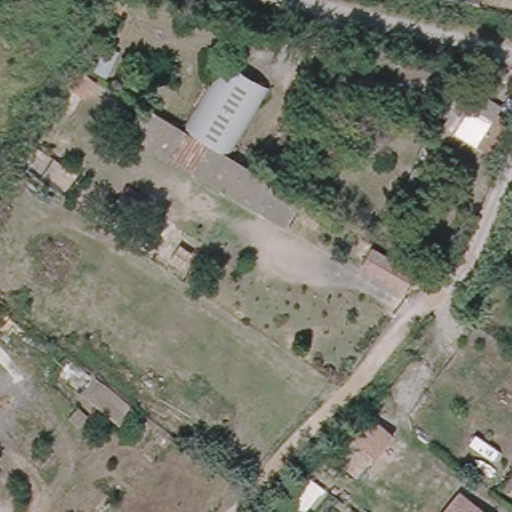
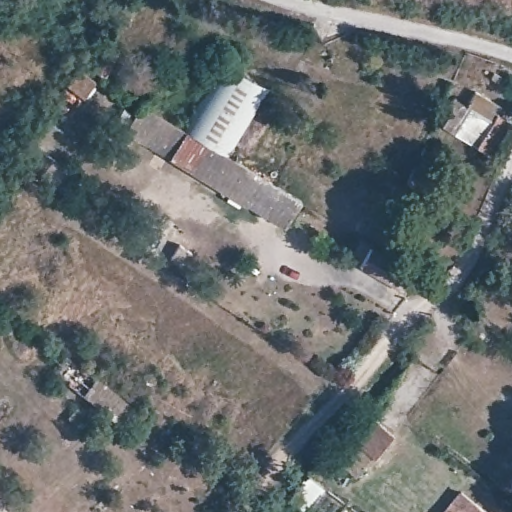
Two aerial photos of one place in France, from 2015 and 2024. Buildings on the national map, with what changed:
unchanged [(224,55),(266,80),(226,147),(184,121),(224,55)]
unchanged [(63,90),(74,71),(93,82),(83,100),(63,90)]
unchanged [(226,147),(303,192),(286,221),(125,126),(142,96),(184,121),(226,147)]
unchanged [(455,127),(461,116),(471,121),(484,100),(508,114),(489,147),(455,127)]
unchanged [(360,271),(374,245),(376,246),(418,271),(402,297),(360,271)]
unchanged [(156,453),(95,405),(80,425),(63,413),(76,395),(65,387),(83,363),(172,432),(156,453)]
unchanged [(366,416),(390,440),(374,458),(369,456),(353,476),(333,459),(366,416)]
unchanged [(472,495),(491,512),(458,512),(472,495)]

